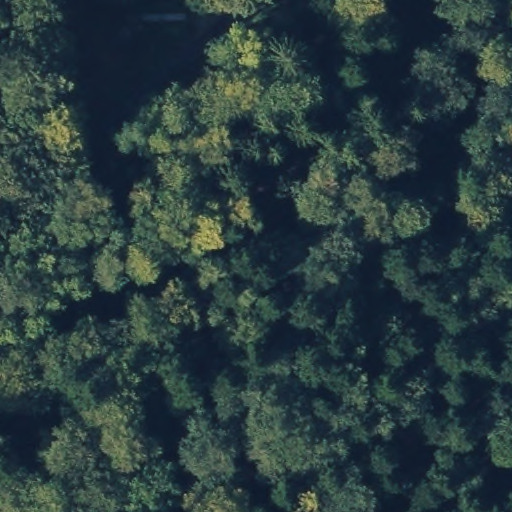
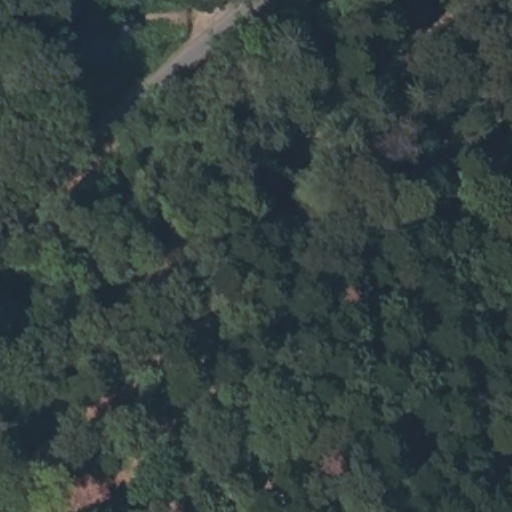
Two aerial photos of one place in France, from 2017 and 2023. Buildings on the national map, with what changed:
unchanged [(131,18),(141,27),(131,38),(121,27),(131,18)]

